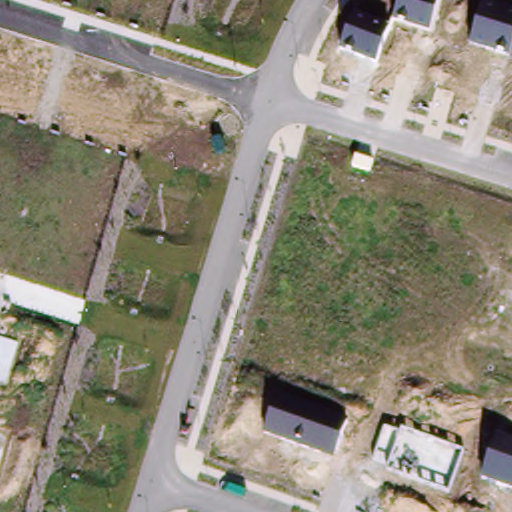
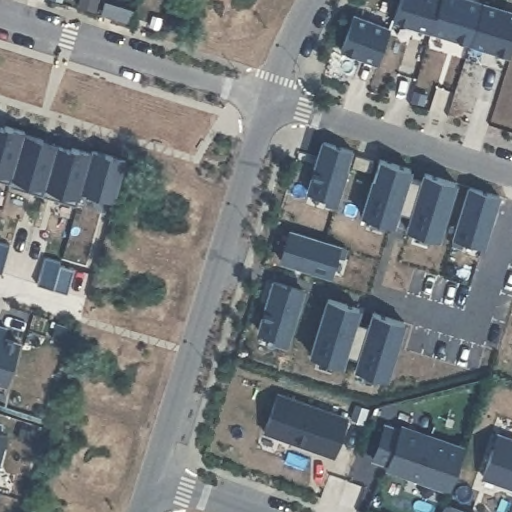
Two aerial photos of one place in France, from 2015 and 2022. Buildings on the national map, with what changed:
unchanged [(392,22),(398,0),(439,0),(430,32),(392,22)]
new [(482,4),(470,45),(430,32),(439,0),(470,0),(482,4)]
unchanged [(482,4),(512,13),(512,46),(508,57),(470,45),(482,4)]
unchanged [(338,49),(351,12),(388,26),(375,64),(338,49)]
new [(5,128),(25,134),(24,136),(10,185),(0,182),(0,129),(4,131),(5,128)]
new [(10,185),(24,136),(44,142),(43,144),(57,148),(43,197),(10,187),(10,185)]
new [(323,143),(352,152),(334,209),(325,206),(327,199),(307,192),(323,143)]
new [(57,148),(72,152),(72,150),(91,155),(81,191),(77,206),(43,197),(57,148)]
new [(91,155),(92,152),(126,162),(115,202),(81,191),(91,155)]
new [(379,161),(411,171),(408,179),(422,183),(425,175),(455,184),(437,241),(407,232),(411,217),(397,212),(392,227),(361,217),(379,161)]
new [(469,189),(498,197),(483,247),(463,241),(461,249),(452,246),(469,189)]
new [(289,233),(345,251),(342,260),(335,257),(329,277),(280,262),(289,233)]
new [(0,275),(0,244),(10,247),(1,276),(0,275)]
new [(67,296),(52,292),(37,287),(45,257),(61,263),(60,267),(75,272),(67,296)]
new [(273,283),(302,292),(285,349),(275,346),(277,338),(257,332),(273,283)]
new [(327,300),(358,310),(354,322),(369,326),(372,314),(403,323),(386,381),(355,371),(358,360),(344,356),(341,367),(310,357),(327,300)]
new [(0,326),(8,328),(5,337),(20,342),(7,385),(0,383),(0,326)]
unchanged [(279,392),(348,417),(333,457),(264,432),(279,392)]
unchanged [(383,427),(398,432),(401,425),(463,448),(449,492),(386,471),(387,465),(372,462),(383,427)]
new [(0,463),(0,434),(8,436),(0,463)]
unchanged [(497,435),(512,440),(512,490),(481,478),(497,435)]
new [(457,512),(442,512),(444,507),(457,512)]

